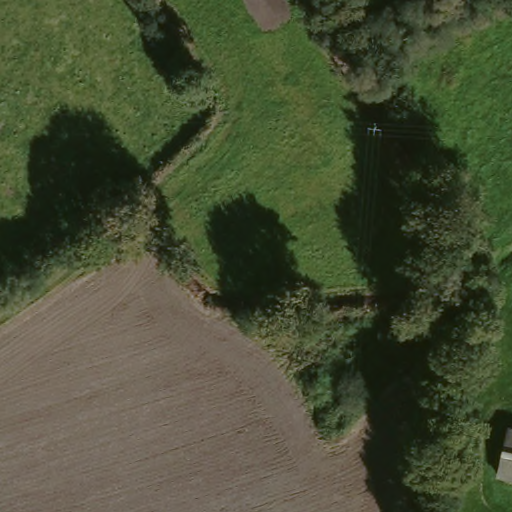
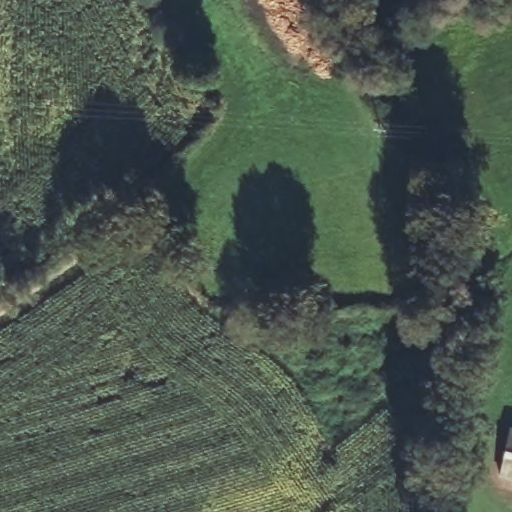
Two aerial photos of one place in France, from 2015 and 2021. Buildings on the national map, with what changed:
unchanged [(503,475),(512,430),(512,477),(503,475)]

